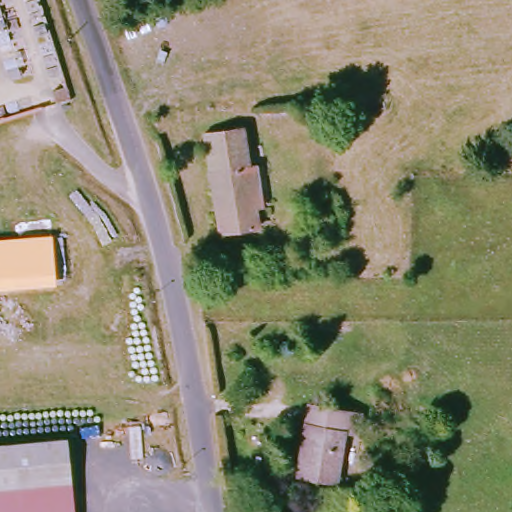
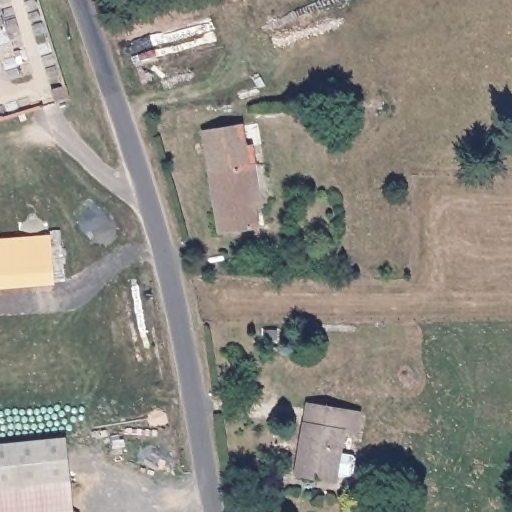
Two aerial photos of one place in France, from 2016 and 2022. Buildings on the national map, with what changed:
unchanged [(195,115),(237,110),(239,128),(250,127),(255,166),(244,168),(204,173),(195,115)]
unchanged [(244,168),(253,230),(213,236),(204,173),(244,168)]
unchanged [(0,241),(52,237),(54,264),(57,289),(0,293),(0,241)]
unchanged [(353,434),(342,432),(333,482),(295,476),(306,402),(355,410),(353,434)]
unchanged [(73,512),(0,512),(0,449),(66,444),(73,512)]

